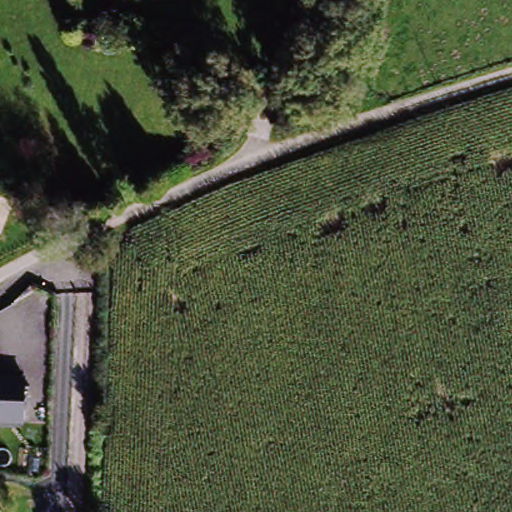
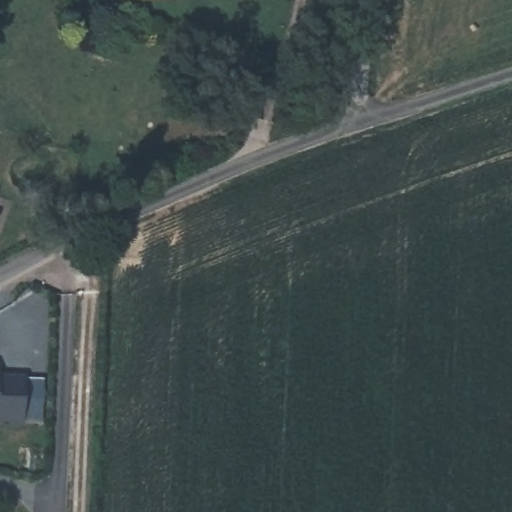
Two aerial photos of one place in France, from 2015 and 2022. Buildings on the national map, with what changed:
unchanged [(22,425),(0,424),(0,375),(24,376),(22,425)]

